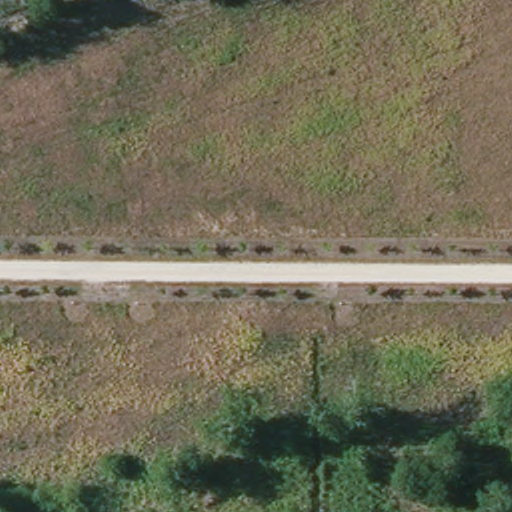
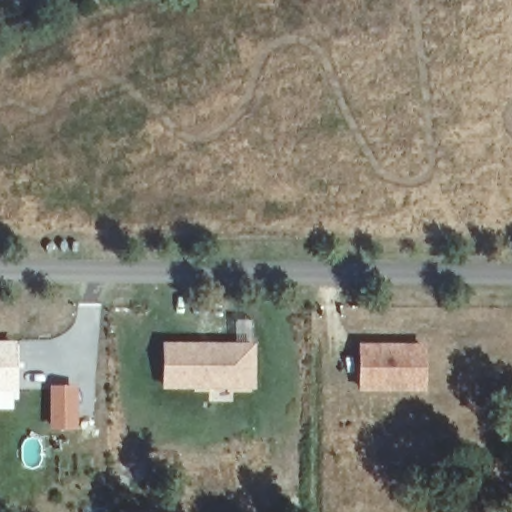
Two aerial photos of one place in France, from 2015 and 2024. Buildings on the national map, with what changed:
new [(18,340),(18,400),(15,400),(15,409),(0,409),(0,340),(18,340)]
new [(161,389),(162,343),(255,342),(254,390),(161,389)]
new [(358,391),(358,343),(424,344),(425,393),(358,391)]
new [(49,384),(79,385),(79,429),(49,429),(49,384)]

